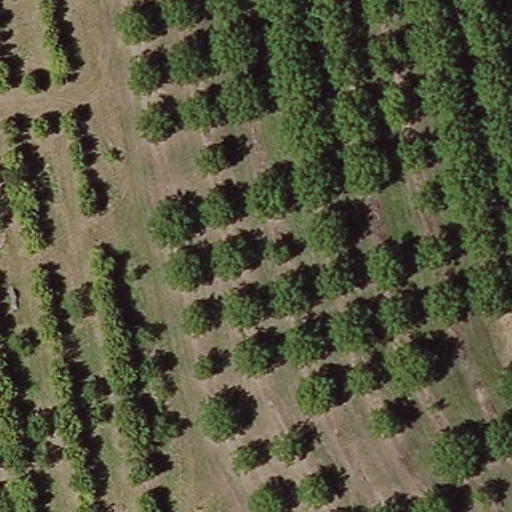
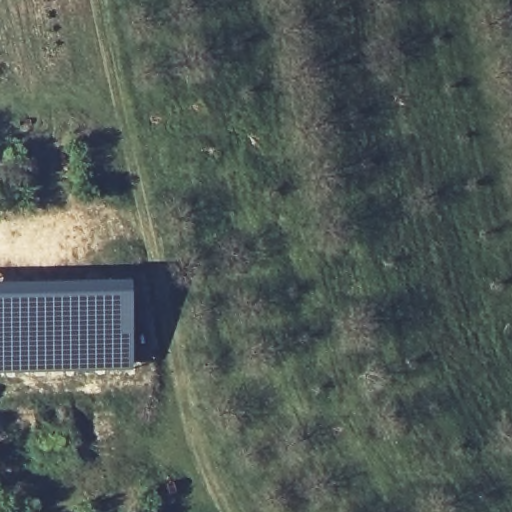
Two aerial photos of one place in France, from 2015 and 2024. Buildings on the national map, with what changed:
new [(130,280),(131,370),(0,373),(0,282),(130,280)]

